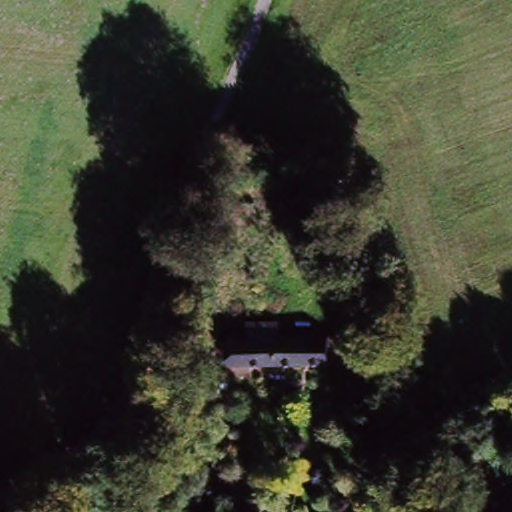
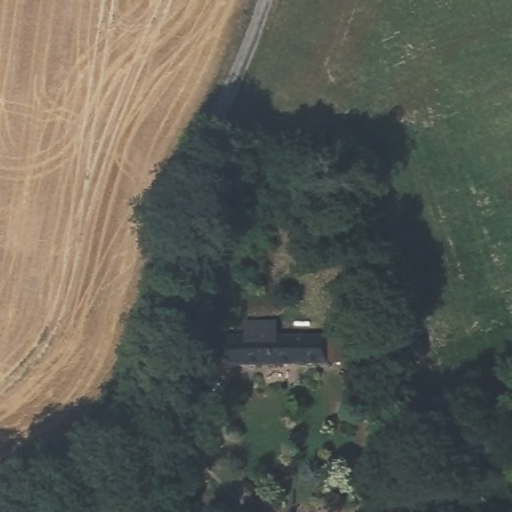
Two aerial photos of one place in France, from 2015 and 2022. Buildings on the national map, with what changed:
unchanged [(335,365),(317,365),(218,367),(219,340),(241,340),(241,328),(264,328),(264,341),(317,340),(334,339),(335,365)]
unchanged [(186,363),(187,346),(200,346),(200,364),(186,363)]
unchanged [(131,498),(145,451),(163,456),(166,440),(176,442),(171,460),(159,507),(131,498)]

